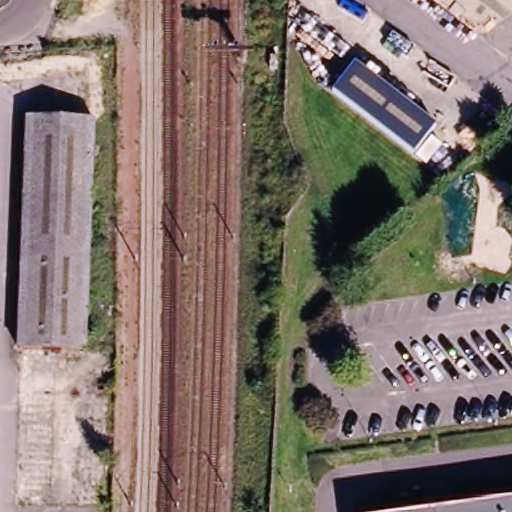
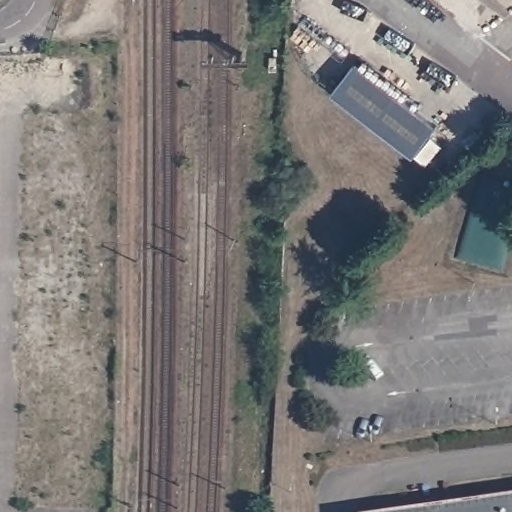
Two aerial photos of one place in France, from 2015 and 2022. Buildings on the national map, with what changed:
unchanged [(361,66),(438,130),(415,159),(337,94),(361,66)]
demolished [(90,349),(22,349),(25,119),(92,120),(90,349)]
unchanged [(404,512),(512,496),(512,512),(404,512)]

